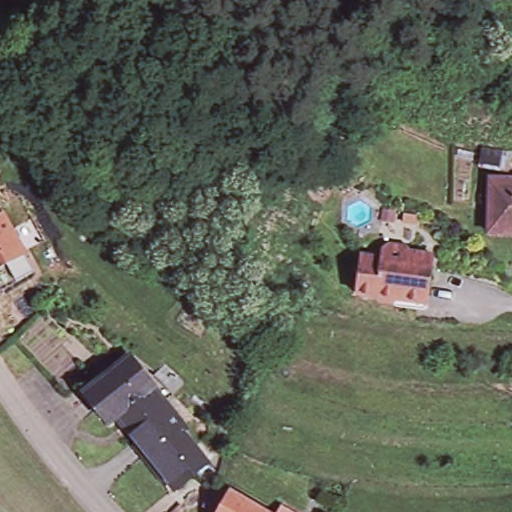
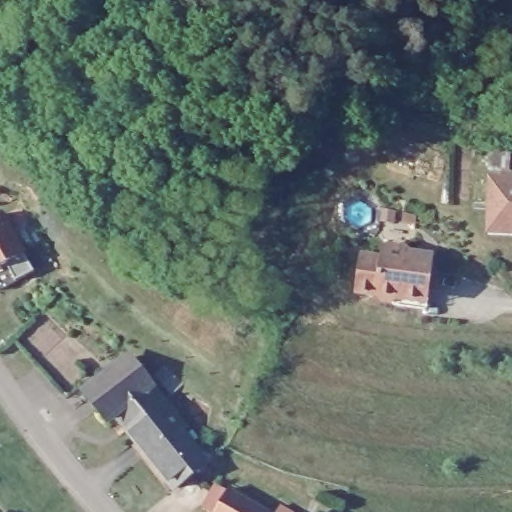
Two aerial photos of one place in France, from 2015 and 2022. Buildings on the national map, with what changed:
unchanged [(490,233),(491,182),(512,183),(512,239),(511,239),(490,238),(490,233)]
unchanged [(0,270),(0,216),(24,257),(0,270)]
unchanged [(417,303),(354,296),(358,262),(378,264),(379,255),(384,247),(404,249),(407,256),(431,258),(429,284),(426,304),(417,303)]
unchanged [(160,360),(176,378),(171,383),(166,378),(163,380),(151,367),(160,360)]
unchanged [(100,412),(86,394),(94,388),(128,363),(162,408),(129,432),(118,417),(109,424),(100,412)]
unchanged [(189,475),(173,488),(129,432),(162,408),(204,463),(210,470),(200,477),(195,482),(189,475)]
unchanged [(220,512),(229,493),(262,512),(220,512)]
unchanged [(285,512),(280,512),(281,510),(285,512)]

